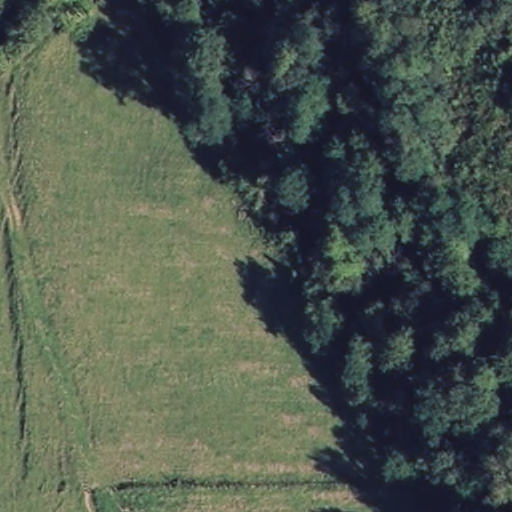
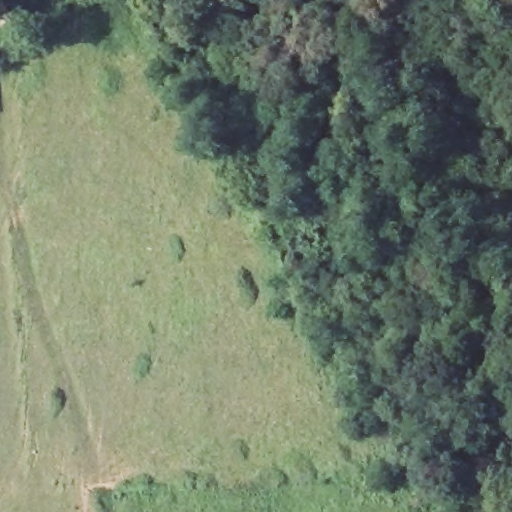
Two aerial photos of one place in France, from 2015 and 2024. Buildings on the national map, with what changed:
unchanged [(6,14),(0,9),(0,0),(15,0),(16,0),(6,14)]

